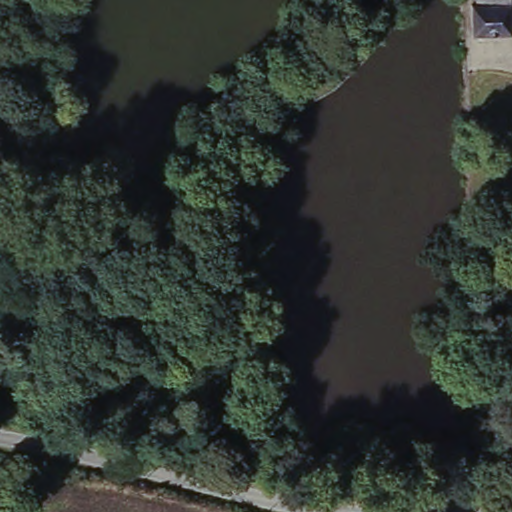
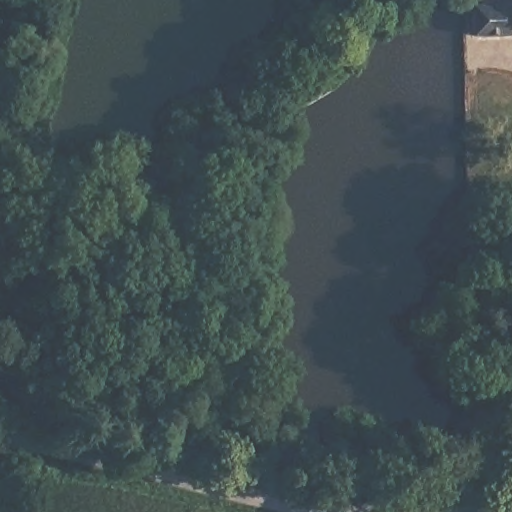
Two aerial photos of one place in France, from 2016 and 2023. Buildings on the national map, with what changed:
unchanged [(484,10),(484,0),(512,0),(512,40),(476,40),(476,10),(484,10)]

